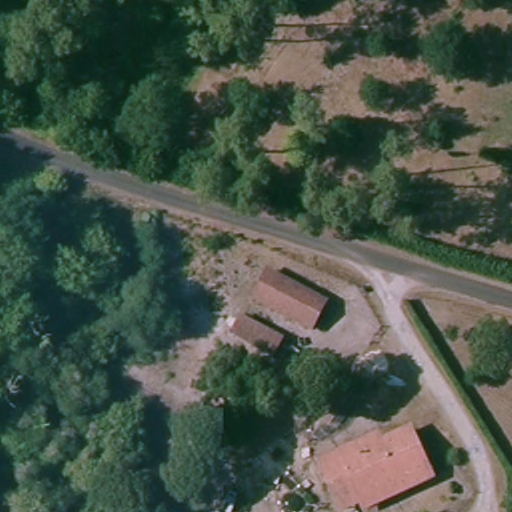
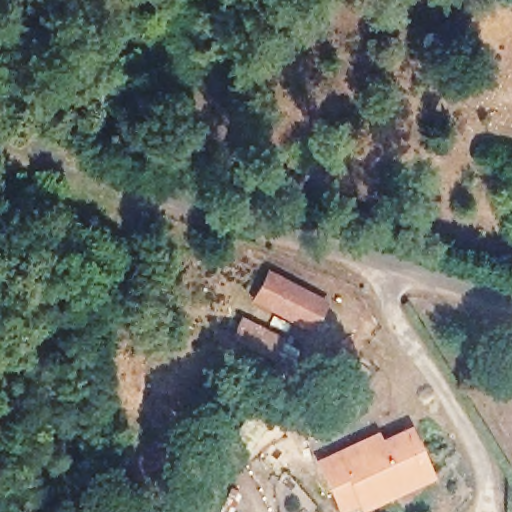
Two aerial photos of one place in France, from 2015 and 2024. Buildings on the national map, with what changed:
unchanged [(263,277),(327,303),(317,325),(254,299),(263,277)]
unchanged [(283,344),(276,359),(231,340),(238,324),(283,344)]
unchanged [(318,463),(336,454),(370,438),(374,447),(409,431),(428,469),(432,478),(364,511),(360,502),(341,511),(331,490),(318,463)]

